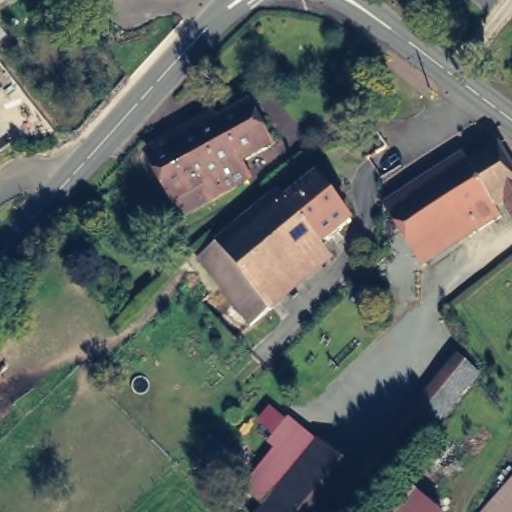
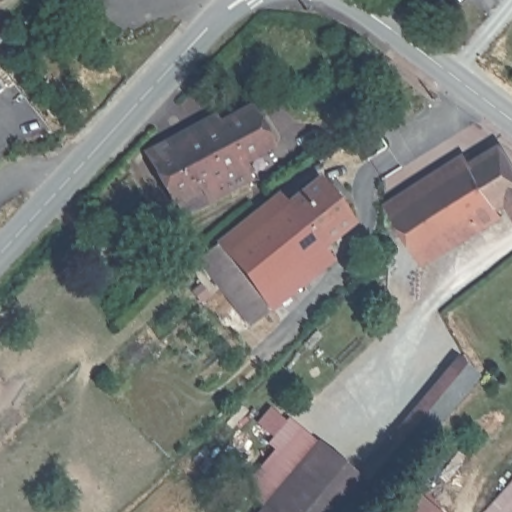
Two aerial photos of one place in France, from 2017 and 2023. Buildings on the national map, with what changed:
unchanged [(231,214),(220,194),(168,223),(136,168),(257,101),(279,141),(251,157),(259,172),(249,177),(260,196),(231,214)]
unchanged [(390,212),(496,144),(512,169),(512,220),(504,209),(477,225),(421,259),(415,249),(390,212)]
unchanged [(280,189),(288,200),(319,175),(358,225),(329,249),(340,263),(274,314),(248,332),(198,259),(224,237),(258,208),(280,189)]
unchanged [(379,490),(361,474),(458,363),(478,382),(379,490)]
unchanged [(273,449),(267,440),(289,414),(319,440),(317,444),(264,506),(242,484),(273,449)]
unchanged [(339,512),(259,512),(264,506),(317,444),(365,484),(339,512)]
unchanged [(403,484),(432,512),(377,512),(403,484)]
unchanged [(512,484),(512,512),(486,512),(512,484)]

